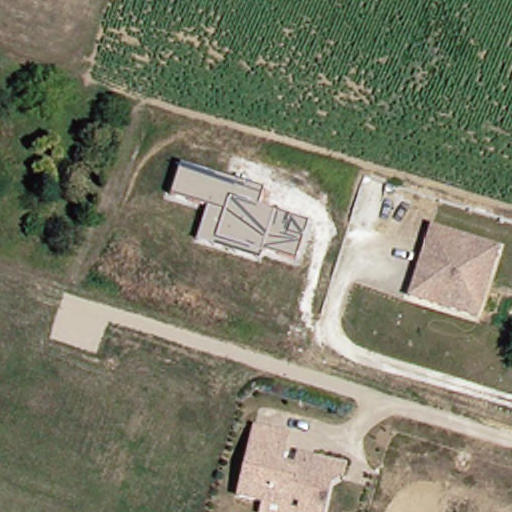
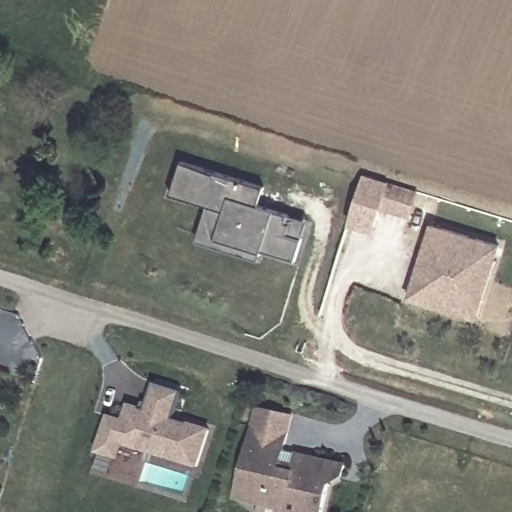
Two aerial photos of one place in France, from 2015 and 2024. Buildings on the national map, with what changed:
unchanged [(165,201),(174,161),(265,186),(260,205),(316,221),(301,272),(195,241),(201,211),(165,201)]
new [(387,183),(415,193),(406,218),(378,208),(370,231),(345,215),(363,176),(387,183)]
unchanged [(408,285),(427,224),(495,244),(472,316),(435,305),(405,295),(408,285)]
new [(107,419),(122,422),(127,407),(143,411),(151,384),(180,392),(172,419),(207,430),(197,466),(123,446),(119,461),(97,455),(107,419)]
unchanged [(236,497),(252,427),(286,434),(282,451),(296,454),(332,463),(343,465),(341,476),(327,484),(321,512),(283,512),(284,507),(236,497)]

